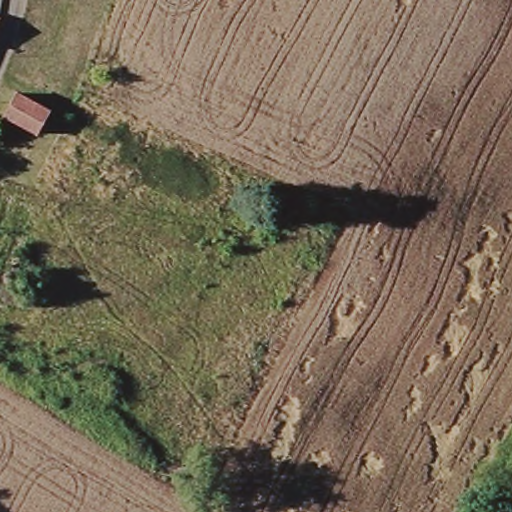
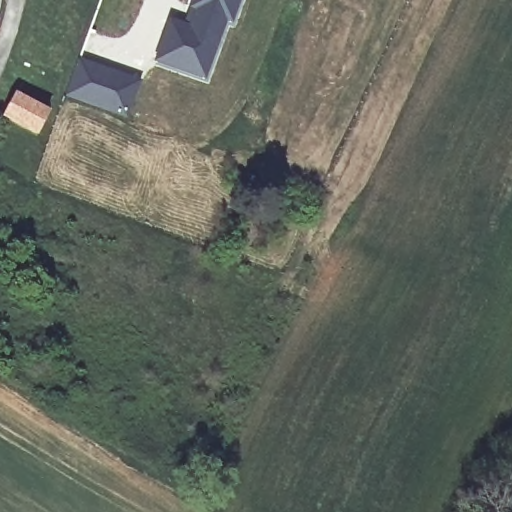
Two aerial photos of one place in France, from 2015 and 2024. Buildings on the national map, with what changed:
new [(156,60),(171,20),(191,27),(197,9),(192,6),(194,0),(239,0),(231,21),(226,19),(214,51),(205,77),(156,60)]
new [(79,55),(142,77),(128,116),(63,95),(79,55)]
unchanged [(45,112),(33,136),(1,120),(13,96),(45,112)]

